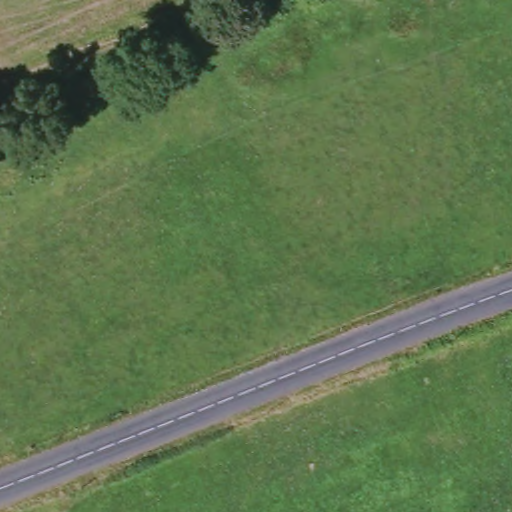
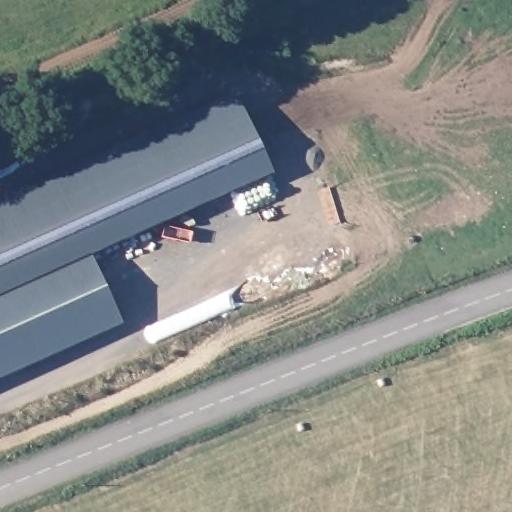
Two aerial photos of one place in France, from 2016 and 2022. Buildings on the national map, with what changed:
new [(236,94),(271,173),(89,256),(120,326),(0,380),(0,199),(236,94)]

